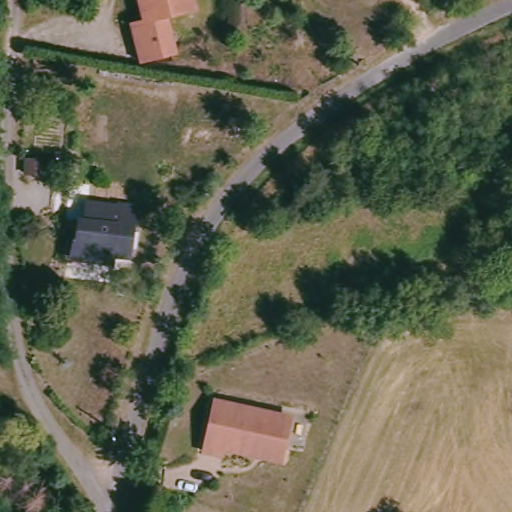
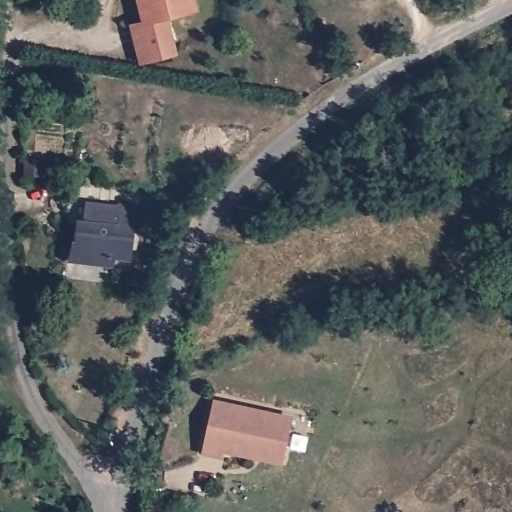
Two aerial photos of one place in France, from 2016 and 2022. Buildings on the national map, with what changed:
unchanged [(175,44),(141,54),(129,15),(142,11),(139,0),(183,0),(163,6),(175,44)]
unchanged [(37,156),(37,158),(44,158),(44,156),(52,156),(52,170),(29,170),(29,156),(37,156)]
unchanged [(75,237),(67,236),(72,210),(77,210),(80,196),(129,204),(117,255),(99,254),(98,256),(72,252),(75,237)]
unchanged [(278,414),(277,420),(294,422),(289,459),(260,455),(260,457),(229,453),(228,460),(207,456),(215,405),(278,414)]

